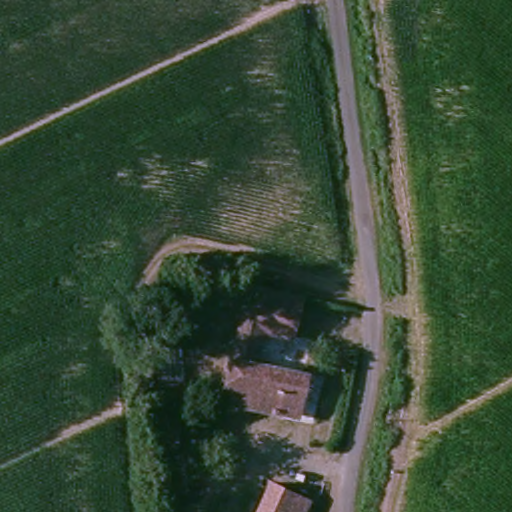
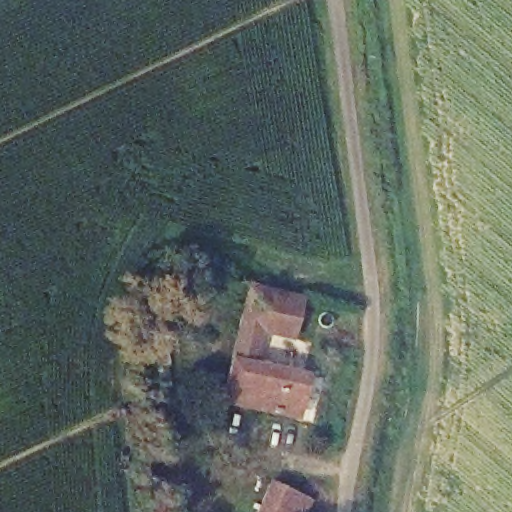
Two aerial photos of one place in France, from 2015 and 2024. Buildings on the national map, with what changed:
unchanged [(235,356),(246,285),(285,293),(276,332),(266,331),(260,359),(313,368),(303,415),(224,401),(235,356)]
unchanged [(271,474),(296,485),(286,512),(266,512),(257,509),(271,474)]

